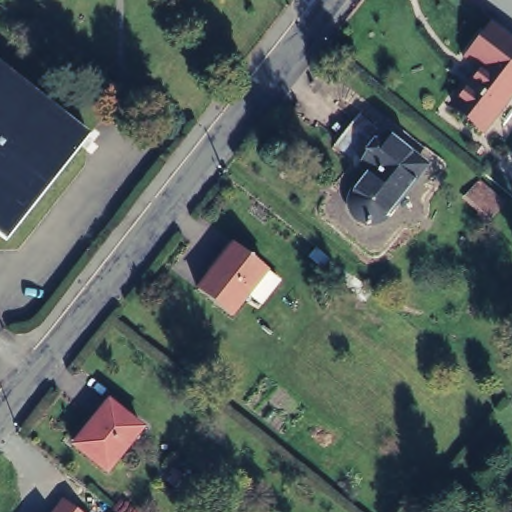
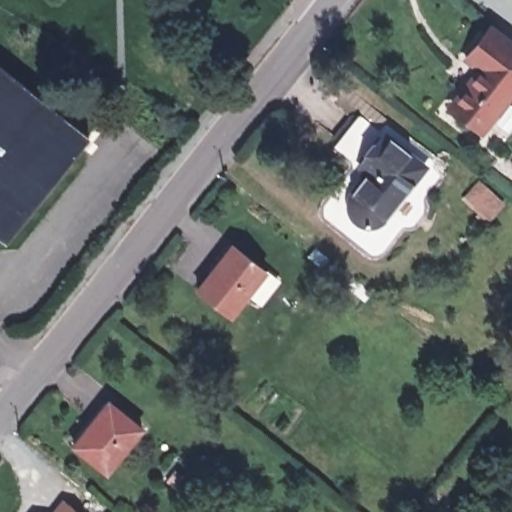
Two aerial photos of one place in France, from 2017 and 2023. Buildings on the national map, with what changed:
unchanged [(483,123),(452,99),(481,61),(468,51),(492,20),(512,36),(512,86),(483,123)]
unchanged [(88,130),(6,232),(0,227),(0,60),(88,130)]
unchanged [(430,164),(386,219),(382,222),(377,224),(372,224),(365,223),(360,219),(356,215),(353,210),(353,204),(354,197),(358,191),(375,170),(365,161),(389,131),(430,164)]
unchanged [(238,244),(270,269),(235,313),(203,288),(238,244)]
unchanged [(118,388),(153,415),(117,458),(84,432),(118,388)]

